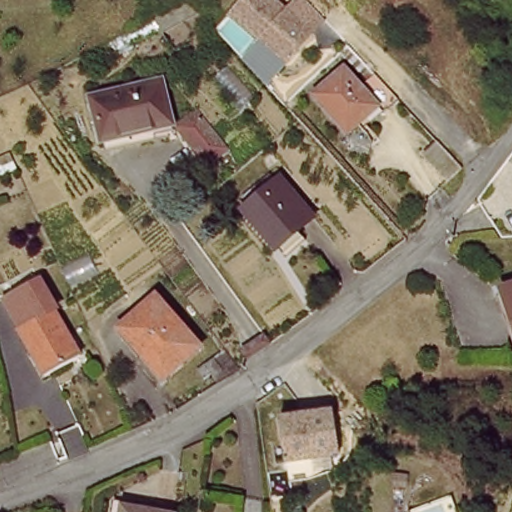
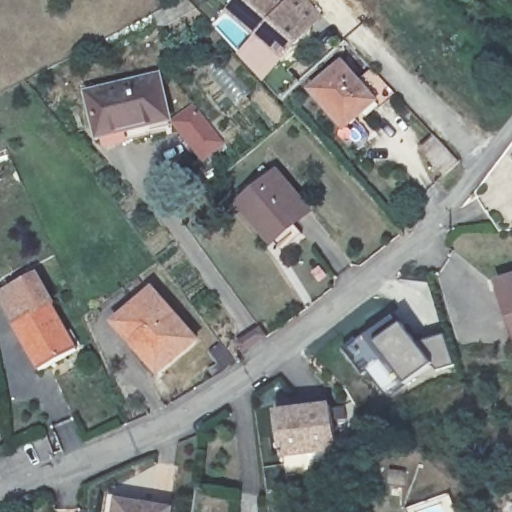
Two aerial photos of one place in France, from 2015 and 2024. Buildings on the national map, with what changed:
unchanged [(289,51),(270,73),(220,18),(233,2),(234,0),(292,0),(316,20),(289,51)]
unchanged [(376,100),(345,126),(312,88),(343,61),(376,100)]
unchanged [(87,90),(160,75),(169,126),(99,141),(87,90)]
unchanged [(421,146),(435,134),(459,160),(448,176),(421,146)]
unchanged [(242,204),(277,173),(309,211),(274,241),(242,204)]
unchanged [(50,303),(17,327),(0,303),(0,291),(32,272),(50,303)]
unchanged [(512,274),(512,307),(510,302),(504,304),(496,280),(512,274)]
unchanged [(201,350),(162,378),(124,324),(161,298),(201,350)]
unchanged [(17,327),(50,303),(80,347),(45,371),(17,327)]
new [(434,365),(406,384),(390,396),(367,370),(364,372),(345,348),(360,338),(362,340),(366,337),(369,341),(397,317),(405,326),(421,346),(446,338),(455,365),(434,365)]
unchanged [(327,403),(333,445),(279,453),(273,411),(327,403)]
unchanged [(403,482),(390,481),(391,470),(404,471),(403,482)]
unchanged [(116,504),(165,512),(115,512),(116,504)]

